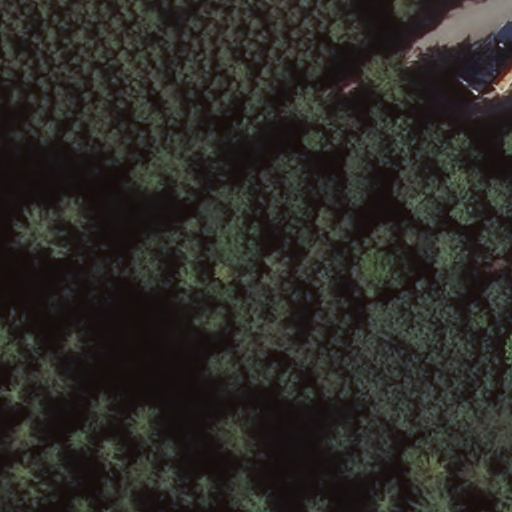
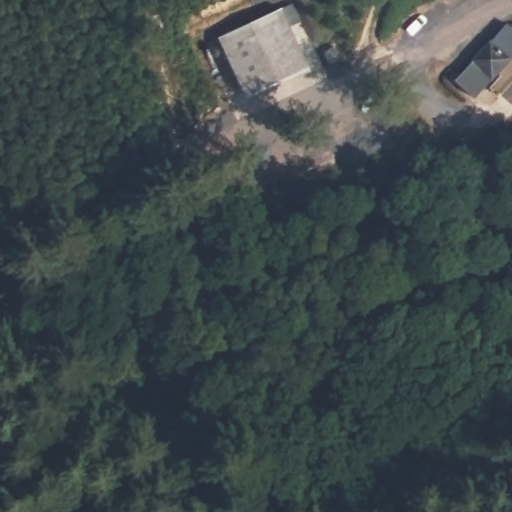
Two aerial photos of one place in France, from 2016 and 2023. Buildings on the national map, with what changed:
new [(311,68),(245,97),(215,37),(284,6),(311,68)]
unchanged [(512,50),(505,57),(506,63),(471,99),(451,80),(498,34),(512,48),(512,50)]

